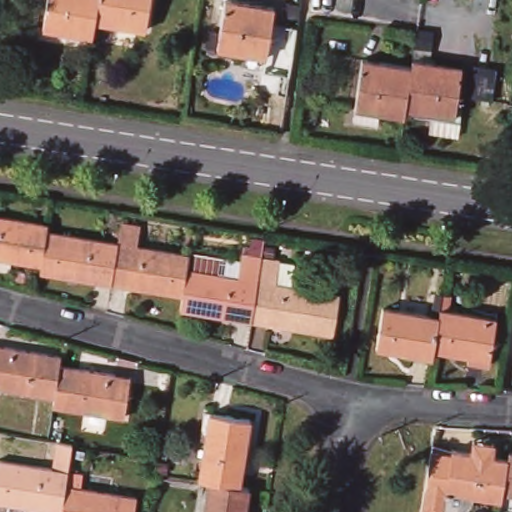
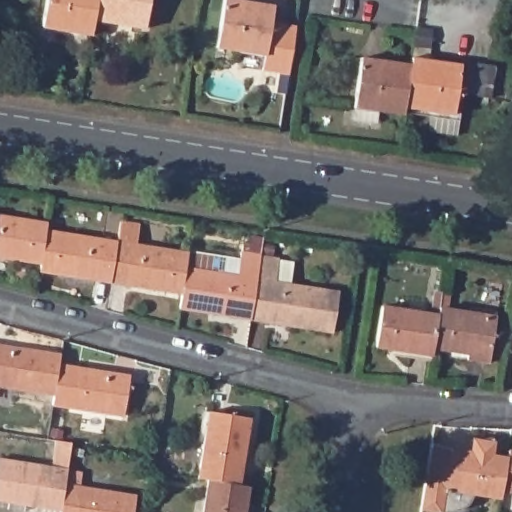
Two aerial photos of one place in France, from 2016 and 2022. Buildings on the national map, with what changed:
unchanged [(46,0),(99,0),(96,24),(94,37),(42,31),(46,0)]
unchanged [(99,0),(148,0),(144,31),(96,24),(99,0)]
unchanged [(219,1),(270,9),(264,58),(212,51),(219,1)]
unchanged [(351,106),(358,56),(410,64),(404,108),(403,115),(351,106)]
unchanged [(410,64),(411,57),(462,65),(455,116),(404,108),(410,64)]
unchanged [(0,256),(0,214),(46,221),(45,229),(40,263),(0,256)]
unchanged [(115,240),(118,220),(136,222),(134,242),(186,251),(184,265),(180,293),(109,282),(115,240)]
unchanged [(40,263),(45,229),(115,240),(109,282),(39,271),(40,263)]
unchanged [(180,293),(184,265),(211,268),(214,251),(239,255),(240,249),(259,252),(249,317),(177,306),(180,293)]
unchanged [(259,252),(277,254),(274,277),(335,287),(329,330),(249,317),(259,252)]
unchanged [(372,347),(378,303),(436,311),(431,347),(430,354),(372,347)]
unchanged [(436,311),(437,304),(493,313),(488,356),(431,347),(436,311)]
unchanged [(58,356),(56,367),(51,398),(0,390),(0,347),(58,356)]
unchanged [(51,398),(56,367),(126,377),(121,418),(50,407),(51,398)]
unchanged [(215,412),(259,419),(248,484),(237,482),(218,480),(205,478),(215,412)]
unchanged [(430,445),(450,451),(468,453),(470,441),(492,445),(490,457),(506,460),(506,461),(505,472),(502,488),(501,492),(500,500),(470,495),(470,497),(469,498),(468,501),(467,502),(466,503),(465,505),(464,507),(462,507),(461,509),(460,510),(458,511),(456,512),(428,512),(420,511),(423,487),(429,451),(430,445)]
unchanged [(505,472),(506,461),(506,460),(507,453),(512,454),(512,494),(501,492),(502,488),(505,472)]
unchanged [(24,503),(22,508),(0,504),(0,456),(66,467),(65,482),(60,508),(24,503)]
unchanged [(205,478),(218,480),(237,482),(233,512),(189,512),(195,477),(205,478)]
unchanged [(65,482),(136,493),(133,512),(59,512),(60,508),(65,482)]

